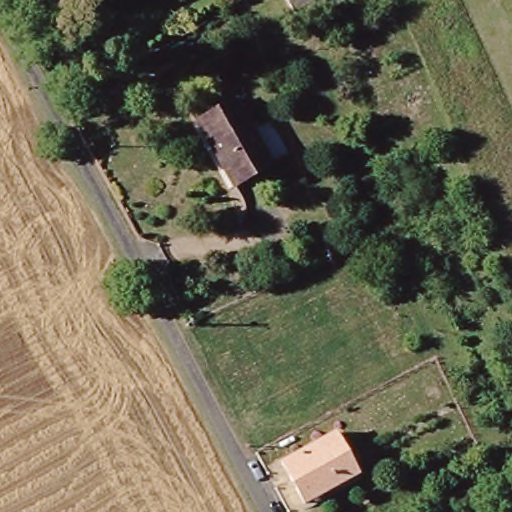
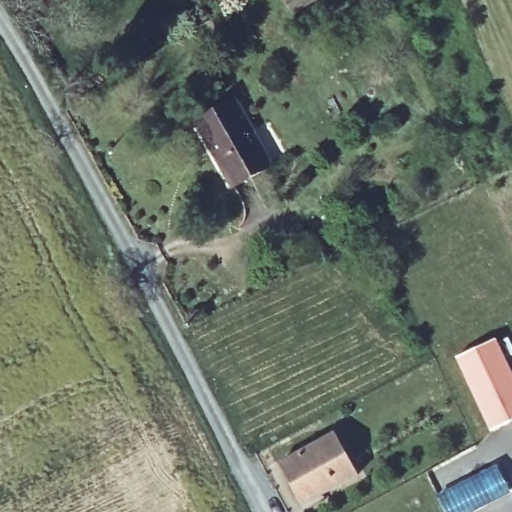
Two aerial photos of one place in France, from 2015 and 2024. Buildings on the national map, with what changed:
unchanged [(289,15),(280,0),(314,0),(289,15)]
unchanged [(227,187),(192,120),(231,100),(266,166),(227,187)]
new [(498,336),(512,368),(512,420),(490,431),(454,357),(498,336)]
unchanged [(278,460),(330,432),(353,475),(301,503),(278,460)]

